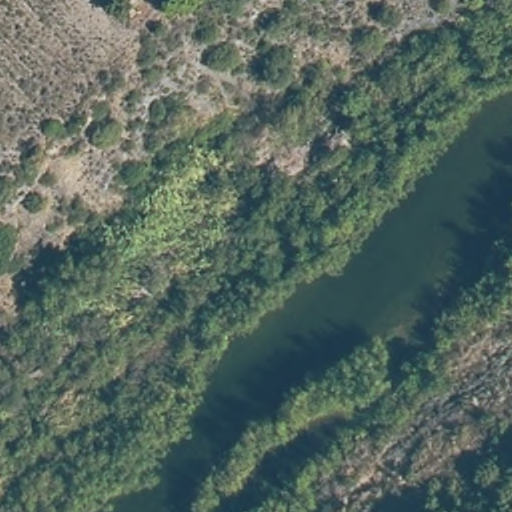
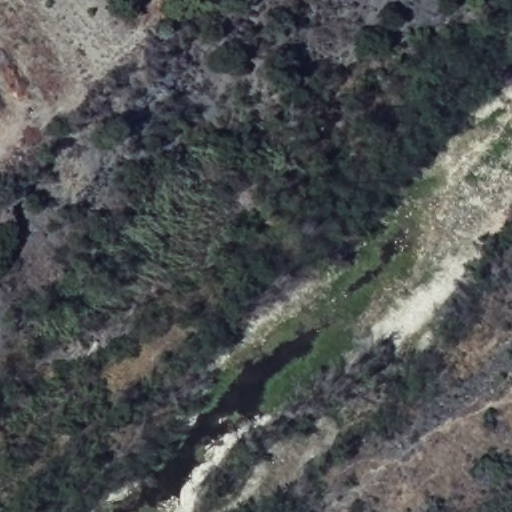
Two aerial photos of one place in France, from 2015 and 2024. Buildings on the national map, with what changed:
unchanged [(116,0),(140,0),(128,12),(116,0)]

